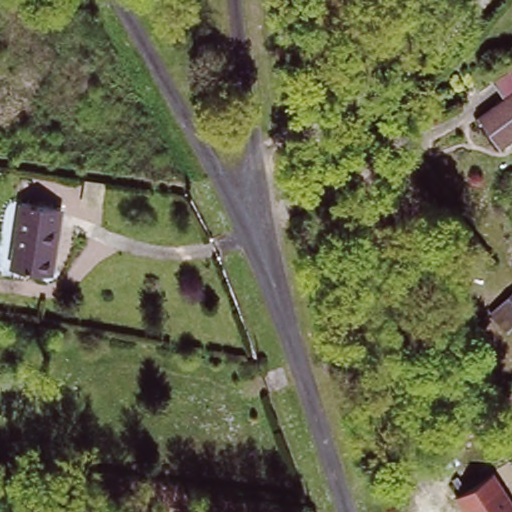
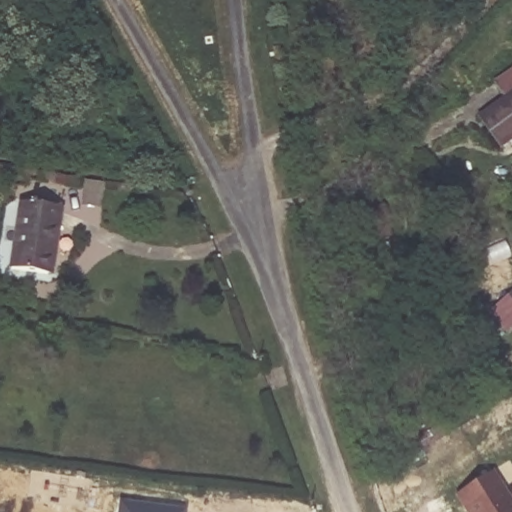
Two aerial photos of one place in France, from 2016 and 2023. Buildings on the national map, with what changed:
unchanged [(487,130),(477,116),(505,97),(495,81),(512,69),(512,141),(500,150),(487,130)]
unchanged [(404,184),(420,210),(405,219),(388,193),(404,184)]
unchanged [(20,203),(60,208),(57,250),(51,249),(49,275),(14,269),(20,203)]
unchanged [(512,288),(512,323),(506,328),(489,310),(512,288)]
unchanged [(490,471),(512,504),(512,512),(466,512),(455,495),(490,471)]
new [(122,497),(186,506),(185,512),(119,512),(122,497)]

